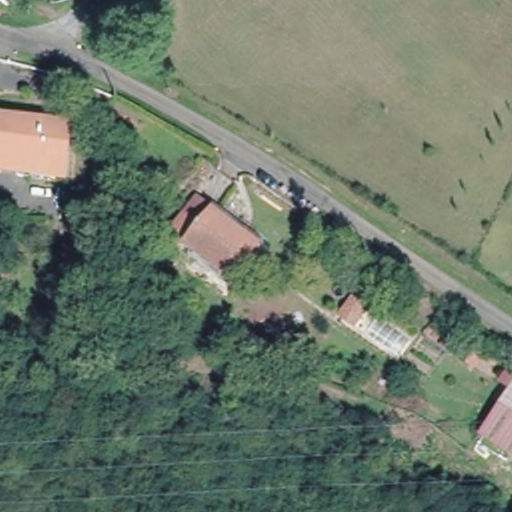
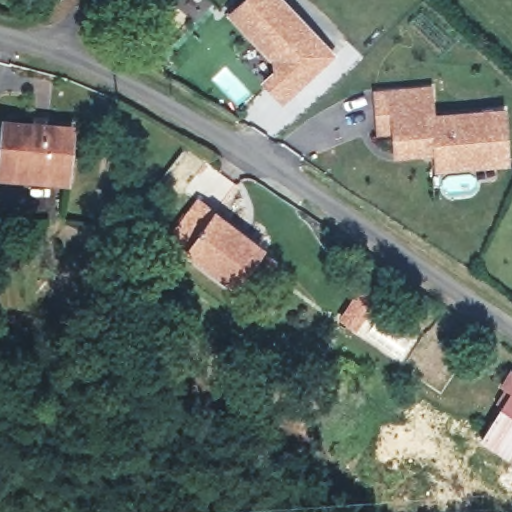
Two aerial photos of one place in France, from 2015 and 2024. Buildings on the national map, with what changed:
new [(275,0),(329,56),(281,102),(264,84),(274,74),(271,61),(229,16),(245,0),(275,0)]
new [(436,169),(436,162),(435,152),(395,155),(393,131),(378,132),(375,95),(427,90),(430,118),(499,112),(502,143),(504,162),(436,169)]
unchanged [(0,173),(0,156),(2,121),(70,127),(65,170),(64,179),(0,173)]
unchanged [(257,246),(239,269),(250,277),(241,288),(171,235),(197,200),(257,246)]
demolished [(445,382),(440,390),(443,393),(437,402),(413,383),(425,367),(445,382)]
new [(512,389),(512,461),(478,440),(512,389)]

